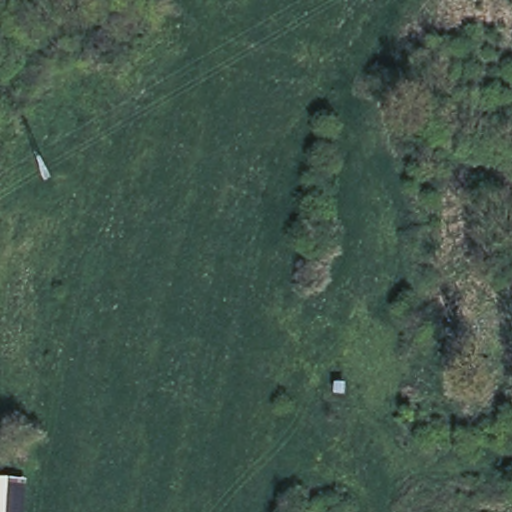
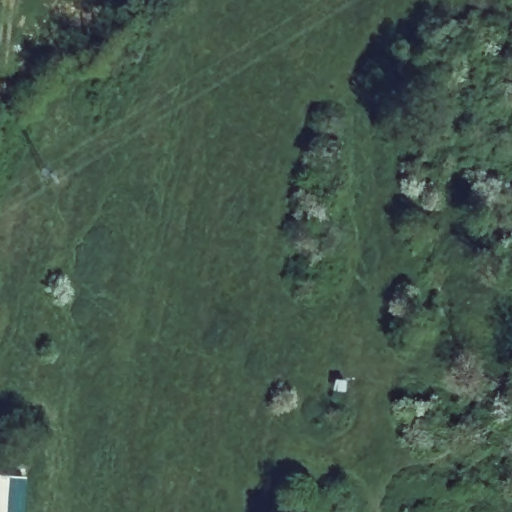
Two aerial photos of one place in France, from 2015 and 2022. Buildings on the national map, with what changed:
unchanged [(17,512),(0,512),(0,476),(20,478),(17,512)]

